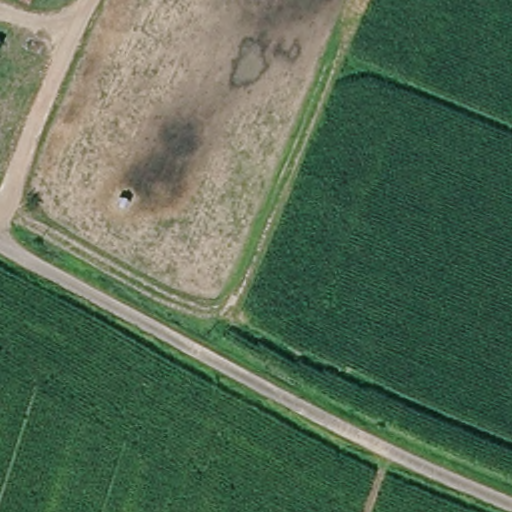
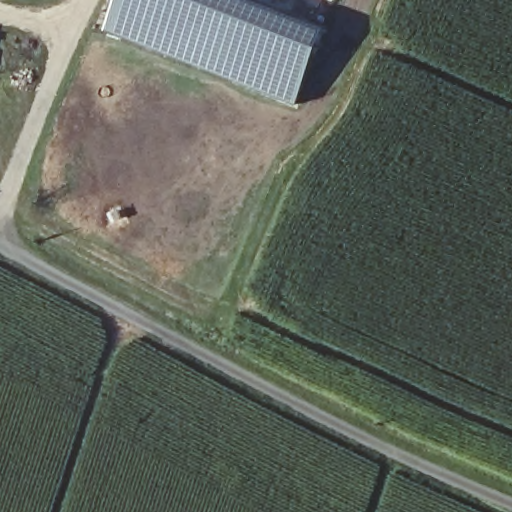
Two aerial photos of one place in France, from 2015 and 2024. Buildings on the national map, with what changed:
new [(299,104),(107,29),(119,0),(259,0),(328,27),(299,104)]

